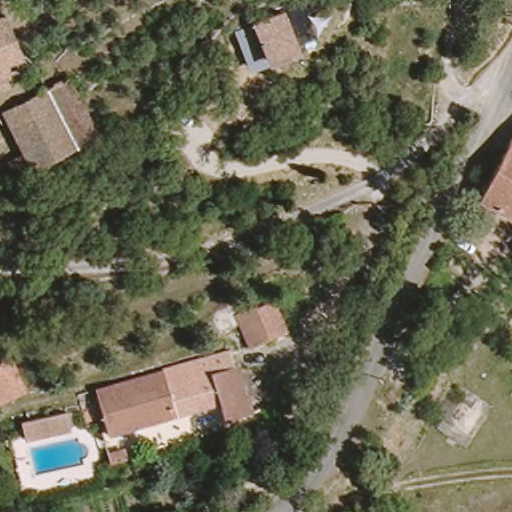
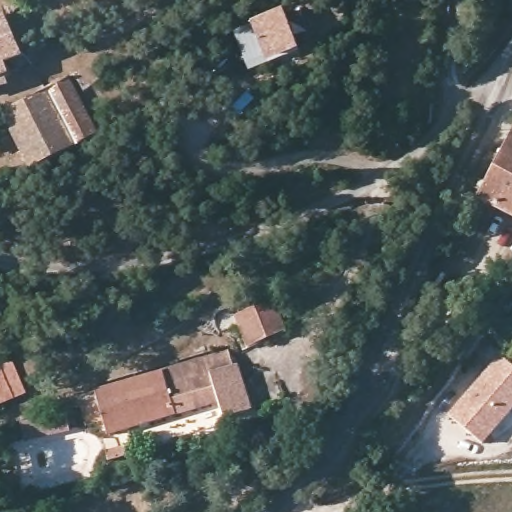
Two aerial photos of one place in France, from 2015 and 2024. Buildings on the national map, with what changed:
unchanged [(302,51),(268,64),(251,70),(236,32),(252,25),(250,20),(285,7),(302,51)]
unchanged [(26,63),(32,63),(39,78),(8,91),(2,79),(0,80),(0,19),(4,17),(26,63)]
unchanged [(3,116),(70,84),(79,102),(96,134),(26,167),(3,116)]
unchanged [(509,136),(512,131),(512,138),(509,136)]
unchanged [(465,220),(480,192),(499,155),(509,136),(512,138),(512,209),(496,201),(482,228),(465,220)]
unchanged [(259,313),(248,280),(270,273),(281,305),(259,313)]
unchanged [(227,357),(233,356),(252,405),(228,412),(221,395),(210,399),(190,405),(112,432),(96,395),(159,374),(159,370),(221,347),(227,357)]
new [(512,364),(512,411),(484,444),(449,414),(500,353),(512,364)]
unchanged [(29,391),(0,406),(0,366),(11,360),(29,391)]
unchanged [(80,392),(91,370),(107,378),(96,400),(80,392)]
unchanged [(64,410),(69,428),(30,436),(25,417),(64,410)]

